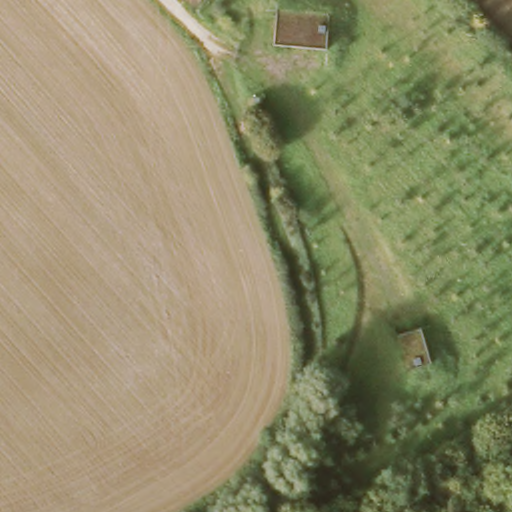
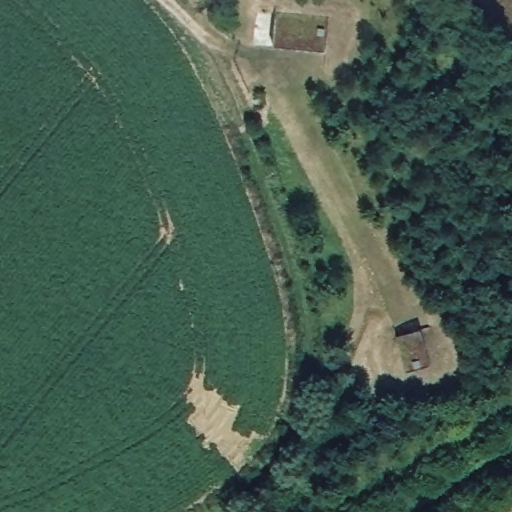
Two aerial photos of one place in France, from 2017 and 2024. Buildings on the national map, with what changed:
unchanged [(328,52),(275,49),(277,7),(297,9),(330,11),(328,40),(328,52)]
unchanged [(425,326),(435,361),(411,368),(400,333),(425,326)]

